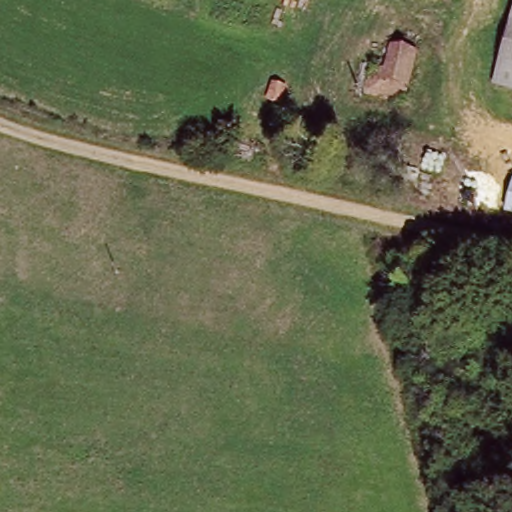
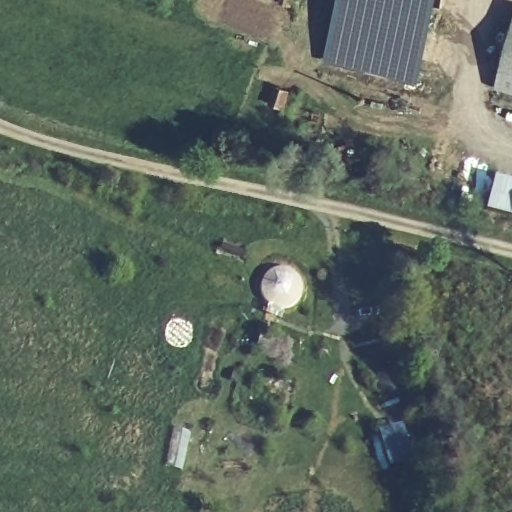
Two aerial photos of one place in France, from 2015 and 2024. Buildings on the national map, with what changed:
new [(324,59),(339,0),(438,0),(418,85),(324,59)]
unchanged [(504,55),(512,30),(512,58),(504,55)]
unchanged [(497,78),(504,55),(512,58),(512,83),(497,78)]
unchanged [(271,98),(277,80),(291,84),(286,103),(271,98)]
unchanged [(512,179),(512,219),(486,212),(493,173),(512,179)]

